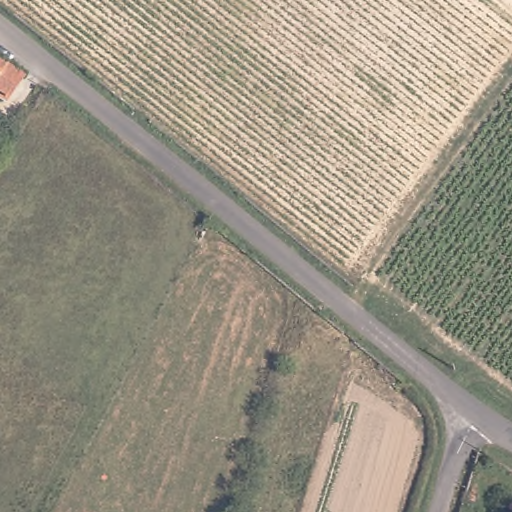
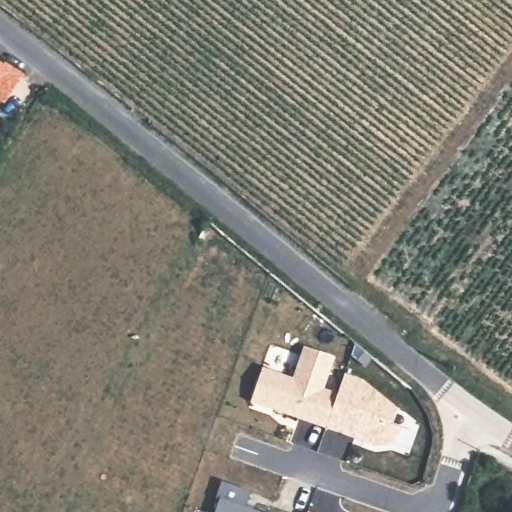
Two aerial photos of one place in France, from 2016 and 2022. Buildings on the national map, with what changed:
unchanged [(19,76),(1,102),(0,102),(0,63),(19,76)]
new [(262,366),(293,376),(303,346),(335,356),(324,389),(337,395),(345,375),(363,380),(400,410),(394,425),(402,428),(414,431),(408,449),(394,445),(374,447),(250,403),(262,366)]
new [(217,499),(222,483),(250,493),(245,508),(256,512),(216,512),(220,500),(217,499)]
new [(309,512),(307,512),(308,511),(309,512)]

